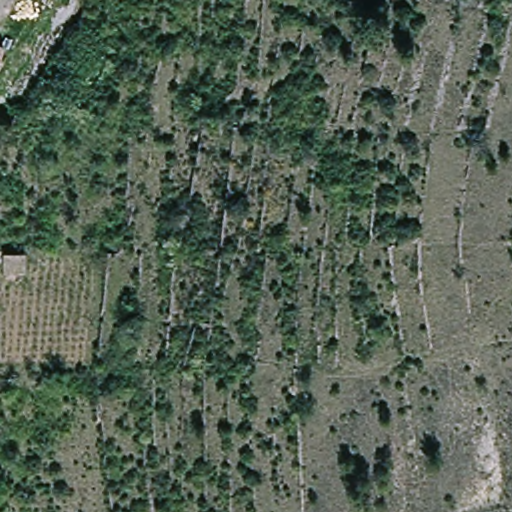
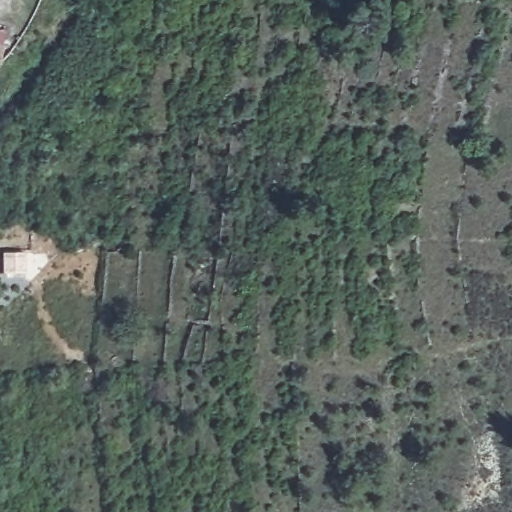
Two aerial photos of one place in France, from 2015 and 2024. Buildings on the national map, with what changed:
unchanged [(0,57),(0,44),(5,46),(0,57)]
unchanged [(7,254),(29,252),(30,277),(7,275),(7,254)]

